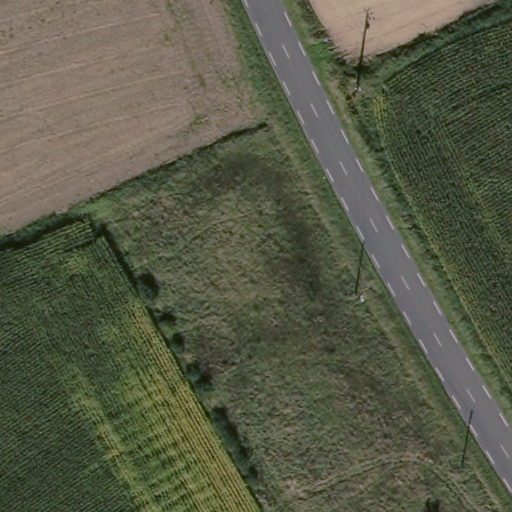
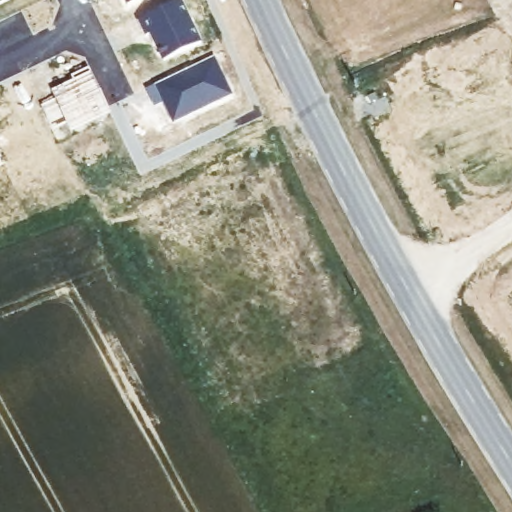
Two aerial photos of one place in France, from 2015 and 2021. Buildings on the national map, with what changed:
new [(0,3),(0,0),(6,0),(0,3)]
new [(127,6),(124,0),(139,0),(127,6)]
new [(180,1),(200,44),(163,62),(150,34),(145,36),(138,21),(180,1)]
new [(212,57),(231,96),(173,124),(163,103),(154,107),(145,90),(212,57)]
new [(55,101),(51,92),(73,82),(71,77),(88,69),(109,113),(70,132),(66,123),(51,130),(41,108),(55,101)]

